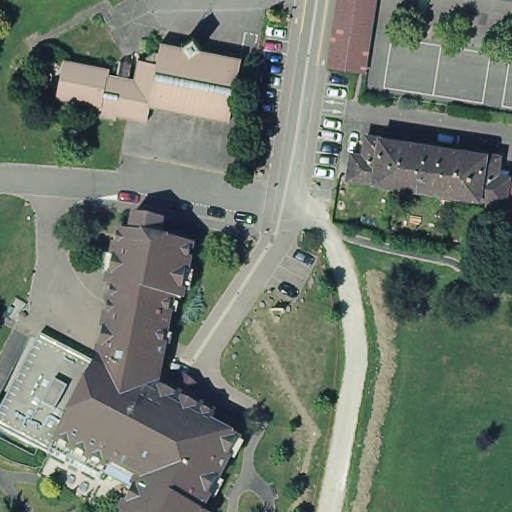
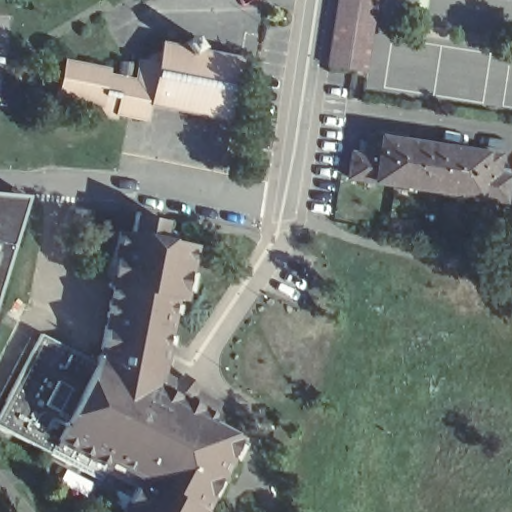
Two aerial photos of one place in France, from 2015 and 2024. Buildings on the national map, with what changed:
unchanged [(329,66),(339,0),(376,0),(366,71),(329,66)]
unchanged [(230,122),(151,106),(148,123),(118,116),(117,121),(99,118),(100,108),(58,100),(65,60),(112,69),(110,75),(119,76),(122,62),(132,64),(130,78),(135,79),(139,60),(143,60),(157,51),(161,52),(164,43),(187,47),(187,46),(185,44),(197,36),(203,48),(202,49),(200,51),(243,58),(230,122)]
unchanged [(349,173),(352,149),(364,151),(367,131),(500,151),(497,171),(508,173),(505,198),(349,173)]
new [(27,196),(0,281),(0,194),(27,196)]
unchanged [(21,432),(47,335),(47,331),(75,346),(98,358),(104,350),(117,282),(112,281),(124,225),(134,227),(137,210),(160,214),(170,216),(167,233),(198,239),(187,295),(178,294),(164,368),(225,401),(220,411),(216,418),(241,431),(244,433),(239,443),(206,506),(213,510),(212,512),(128,512),(130,509),(125,507),(143,473),(112,456),(103,475),(21,432)]
unchanged [(47,335),(21,432),(0,421),(0,410),(42,328),(47,331),(47,335)]

